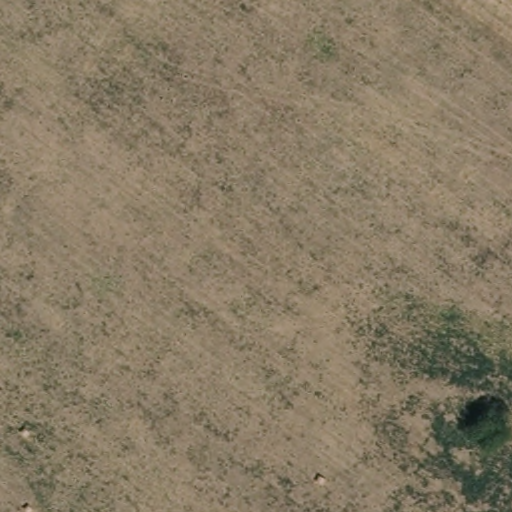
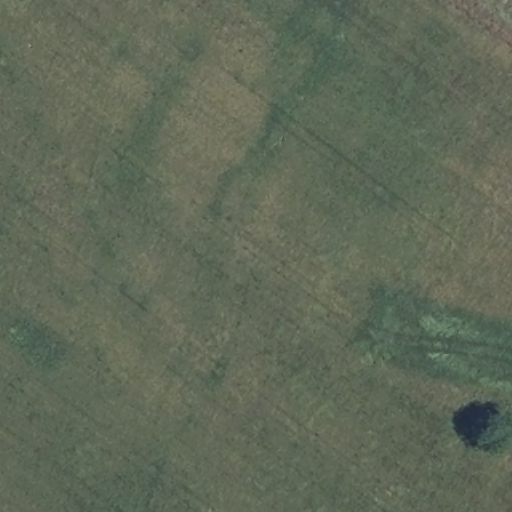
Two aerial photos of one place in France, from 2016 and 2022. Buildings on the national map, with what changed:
[]

